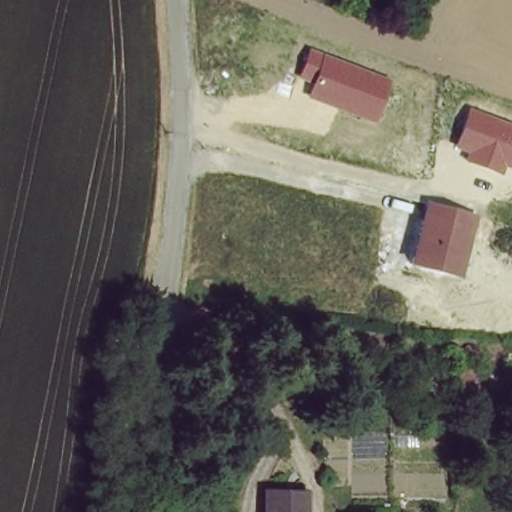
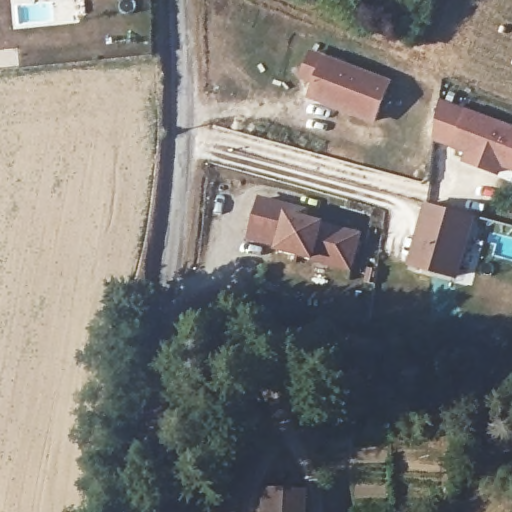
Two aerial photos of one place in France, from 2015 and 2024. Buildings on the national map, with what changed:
unchanged [(312,49),(393,81),(376,123),(309,98),(314,85),(300,79),(312,49)]
new [(435,140),(440,98),(470,109),(454,149),(435,140)]
unchanged [(470,109),(512,125),(512,169),(505,166),(501,176),(465,162),(468,154),(454,149),(470,109)]
new [(312,263),(275,253),(276,249),(246,240),(258,195),(311,210),(310,219),(324,223),(363,234),(350,273),(312,263)]
unchanged [(427,202),(477,215),(460,279),(411,265),(427,202)]
unchanged [(269,497),(305,498),(304,512),(268,512),(269,497)]

